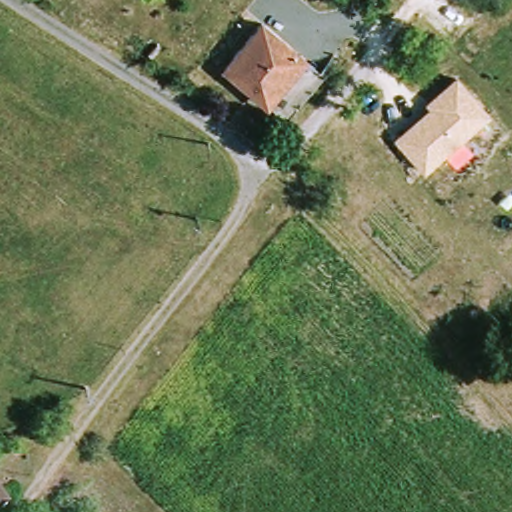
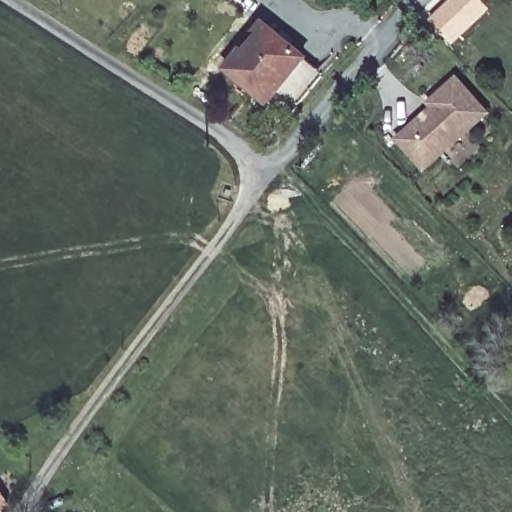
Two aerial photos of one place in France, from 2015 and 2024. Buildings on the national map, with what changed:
new [(452,0),(483,0),(492,10),(455,46),(431,20),(452,0)]
unchanged [(223,72),(262,25),(301,57),(261,104),(223,72)]
unchanged [(301,57),(321,74),(281,122),(261,104),(301,57)]
unchanged [(424,172),(394,139),(429,107),(426,103),(456,74),(489,112),(424,172)]
unchanged [(5,504),(0,507),(0,496),(5,504)]

